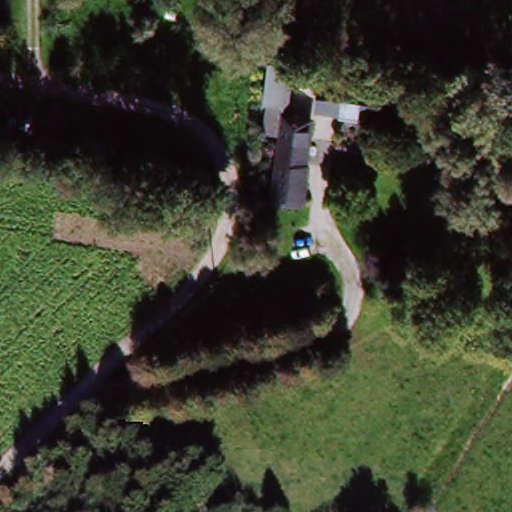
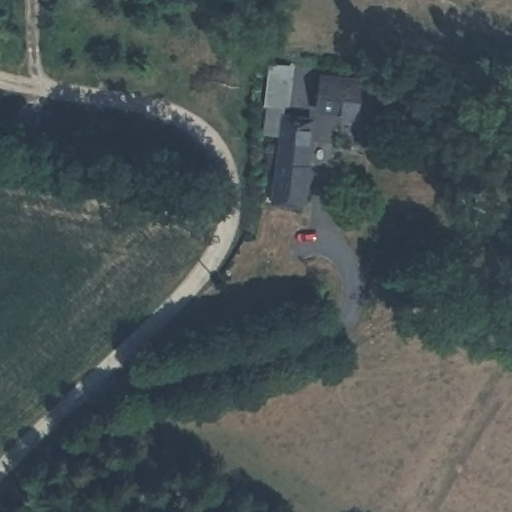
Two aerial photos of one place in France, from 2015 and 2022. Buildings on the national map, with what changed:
unchanged [(358,124),(346,123),(346,114),(319,111),(321,74),(347,75),(348,82),(374,83),(373,115),(358,124)]
unchanged [(261,147),(261,84),(283,85),(283,102),(282,151),(261,147)]
unchanged [(277,199),(282,151),(283,102),(310,104),(306,205),(277,199)]

